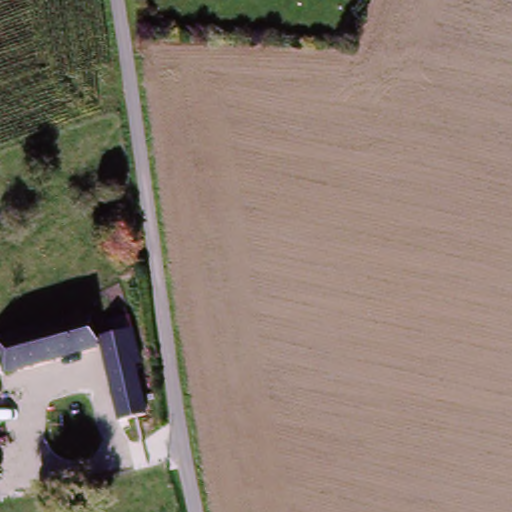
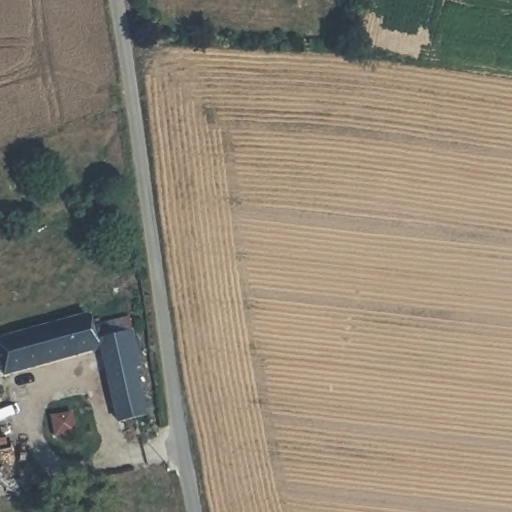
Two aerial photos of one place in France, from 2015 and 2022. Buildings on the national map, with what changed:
unchanged [(112,428),(97,351),(4,378),(0,367),(0,340),(88,313),(93,337),(129,327),(147,420),(112,428)]

